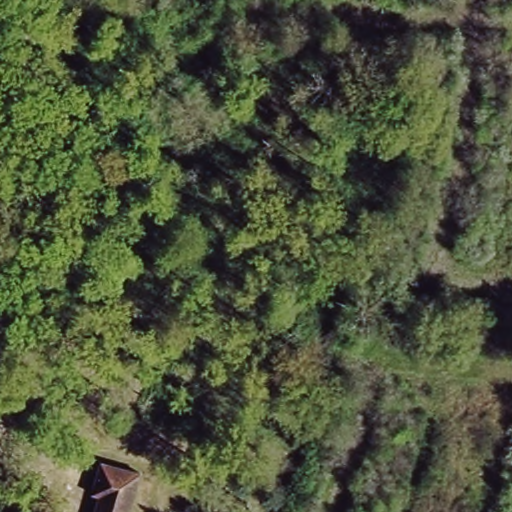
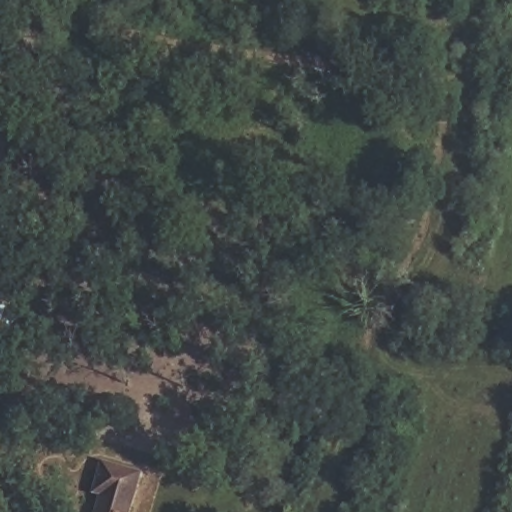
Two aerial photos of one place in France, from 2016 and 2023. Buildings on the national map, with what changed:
unchanged [(89,491),(102,457),(142,472),(131,512),(94,512),(99,494),(89,491)]

